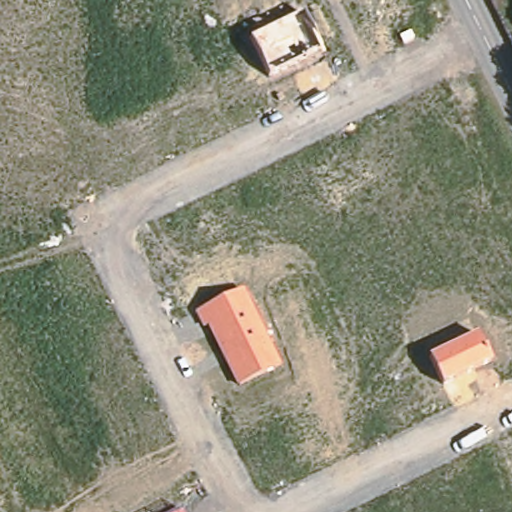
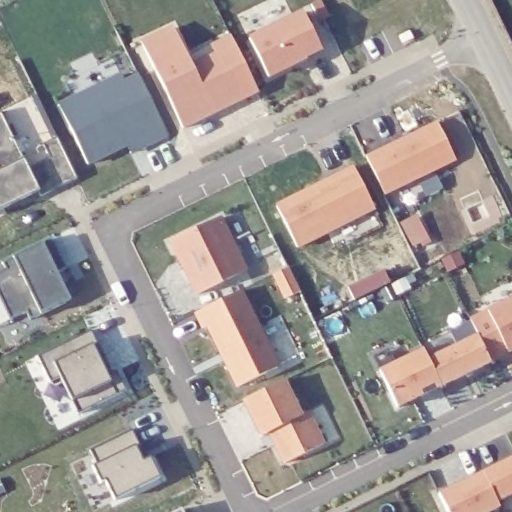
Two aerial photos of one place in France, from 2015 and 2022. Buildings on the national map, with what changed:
unchanged [(304,15),(322,51),(306,60),(307,61),(269,80),(250,41),(304,15)]
new [(142,44),(172,30),(195,72),(218,61),(213,50),(233,40),(258,94),(230,107),(227,104),(213,111),(215,115),(183,129),(142,44)]
new [(410,33),(414,40),(403,45),(400,38),(410,33)]
new [(168,137),(140,151),(133,140),(126,144),(128,146),(90,165),(72,130),(83,124),(72,101),(122,77),(126,85),(140,78),(168,137)]
new [(1,115),(30,170),(49,160),(43,147),(58,140),(78,181),(42,199),(39,192),(0,211),(0,174),(1,174),(0,172),(0,115),(1,115)]
new [(278,209),(354,170),(374,210),(298,248),(278,209)]
new [(172,245),(221,220),(247,272),(197,296),(172,245)]
new [(5,271),(2,265),(51,241),(66,270),(57,275),(72,302),(30,322),(27,315),(11,323),(0,300),(0,274),(5,271)]
unchanged [(208,327),(204,330),(197,315),(242,292),(279,368),(238,388),(226,362),(222,353),(208,327)]
new [(512,304),(512,352),(491,363),(471,323),(512,304)]
new [(92,332),(113,375),(117,373),(127,393),(78,416),(62,380),(52,385),(38,359),(92,332)]
unchanged [(428,361),(478,337),(492,365),(442,388),(438,381),(428,361)]
new [(398,410),(382,374),(424,352),(442,389),(398,410)]
new [(327,444),(284,465),(270,433),(261,437),(244,400),(287,380),(303,415),(312,410),(327,444)]
new [(105,482),(102,485),(93,468),(97,466),(92,453),(133,432),(140,448),(137,450),(145,464),(150,460),(160,480),(115,502),(105,482)]
new [(502,509),(496,512),(448,512),(440,496),(512,460),(512,497),(500,503),(502,509)]
new [(182,506),(185,512),(171,512),(182,506)]

